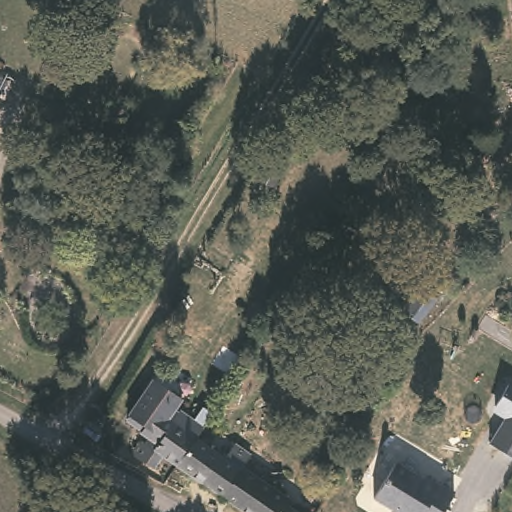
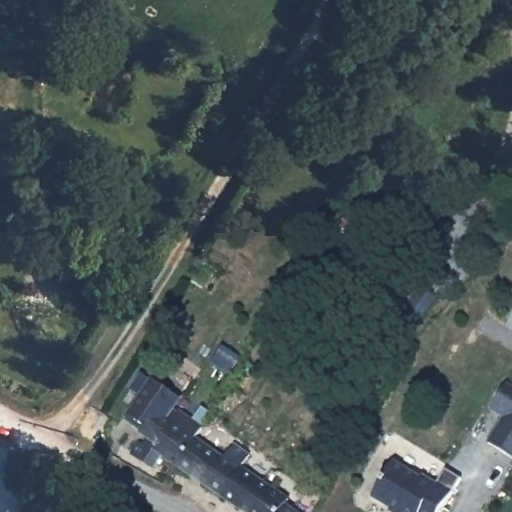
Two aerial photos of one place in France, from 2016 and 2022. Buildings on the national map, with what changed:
unchanged [(144,442),(145,442),(145,441),(145,440),(146,440),(146,439),(147,439),(148,438),(149,438),(150,438),(151,438),(152,438),(153,439),(154,440),(155,441),(155,442),(155,443),(158,439),(143,429),(141,433),(122,421),(149,381),(176,399),(168,410),(173,413),(175,410),(185,417),(201,428),(195,438),(178,465),(162,455),(153,469),(131,452),(139,440),(144,443),(144,442)]
unchanged [(502,418),(487,409),(505,385),(512,389),(512,459),(486,444),(502,418)]
unchanged [(230,496),(228,498),(178,465),(195,438),(228,458),(236,445),(254,456),(244,473),(230,496)]
unchanged [(422,476),(437,485),(438,483),(453,492),(441,512),(395,512),(372,498),(394,462),(420,478),(422,476)]
unchanged [(249,512),(228,498),(230,496),(244,473),(300,512),(249,512)]

